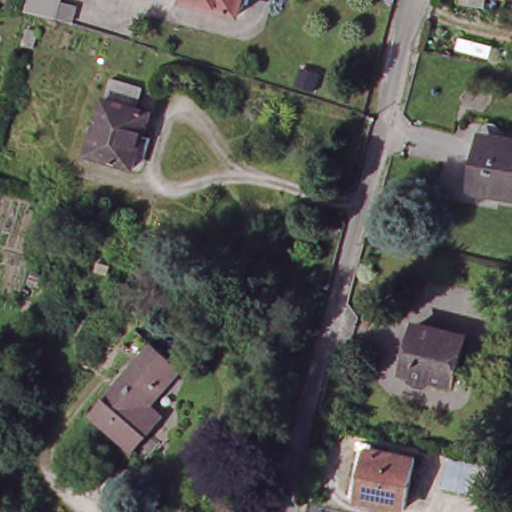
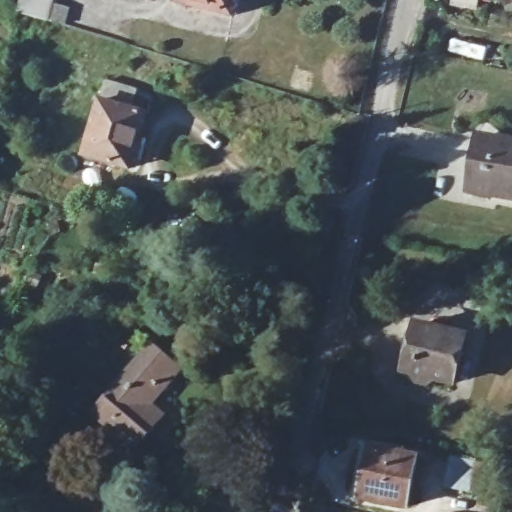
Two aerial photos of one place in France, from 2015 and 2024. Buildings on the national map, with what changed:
unchanged [(52,0),(48,19),(17,10),(20,0),(52,0)]
unchanged [(234,0),(231,13),(179,0),(234,0)]
unchanged [(128,174),(84,162),(105,82),(135,90),(129,112),(144,116),(141,126),(131,163),(128,174)]
unchanged [(472,192),(479,142),(512,147),(512,200),(472,192)]
unchanged [(451,382),(404,371),(416,323),(462,335),(451,382)]
unchanged [(153,407),(166,420),(134,455),(96,419),(147,362),(131,346),(142,334),(158,349),(184,373),(153,407)]
unchanged [(441,490),(444,454),(479,460),(469,496),(441,490)]
unchanged [(408,509),(360,500),(369,455),(418,465),(408,509)]

